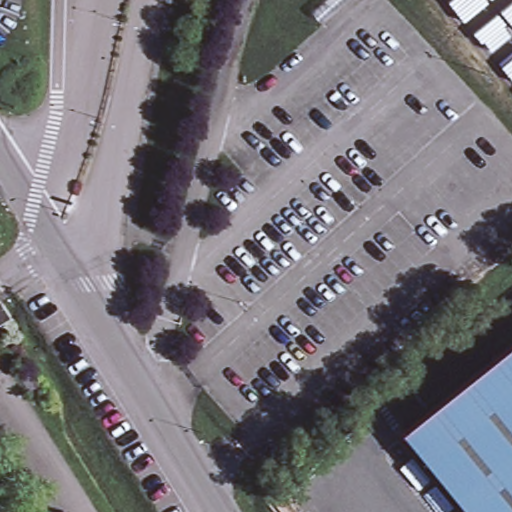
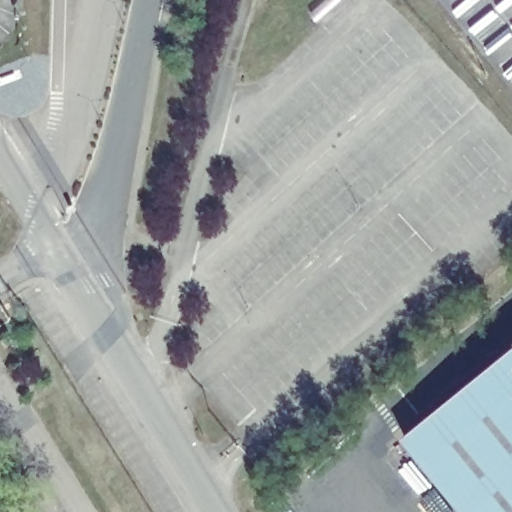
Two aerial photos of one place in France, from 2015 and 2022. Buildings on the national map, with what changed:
unchanged [(1,297),(12,313),(0,322),(0,297),(1,297)]
unchanged [(406,433),(512,348),(512,512),(471,512),(423,453),(406,433)]
unchanged [(19,512),(7,512),(16,507),(19,512)]

